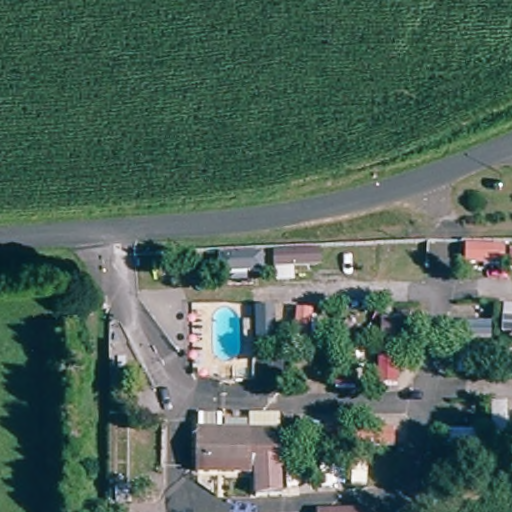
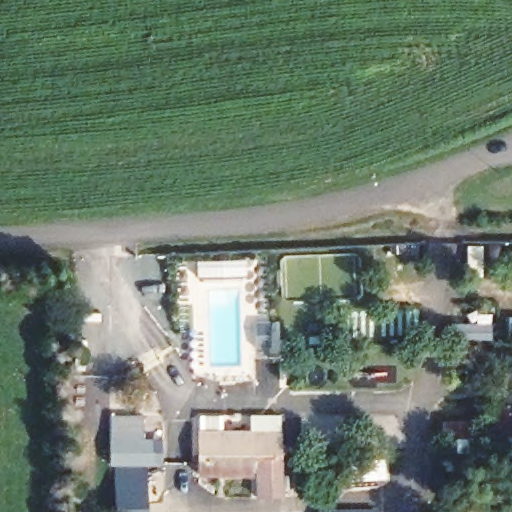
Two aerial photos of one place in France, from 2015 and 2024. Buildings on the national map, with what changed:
unchanged [(283,411),(283,447),(254,448),(254,433),(254,410),(283,411)]
new [(145,414),(145,437),(164,437),(164,464),(148,465),(149,512),(117,512),(116,465),(111,465),(111,415),(145,414)]
unchanged [(254,448),(253,473),(200,474),(201,434),(254,433),(254,448)]
unchanged [(285,494),(253,494),(253,473),(254,448),(283,447),(285,494)]
unchanged [(337,510),(338,512),(318,512),(318,511),(337,510)]

